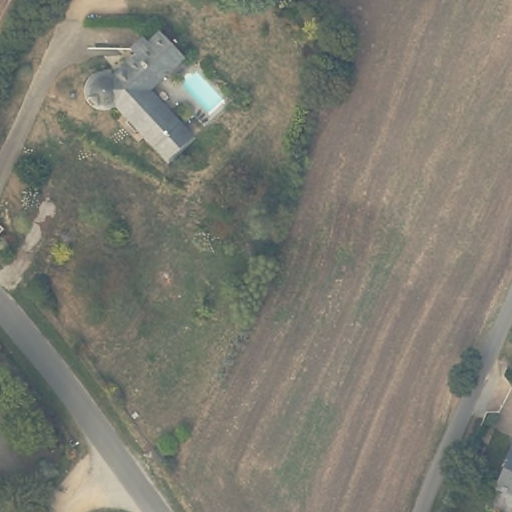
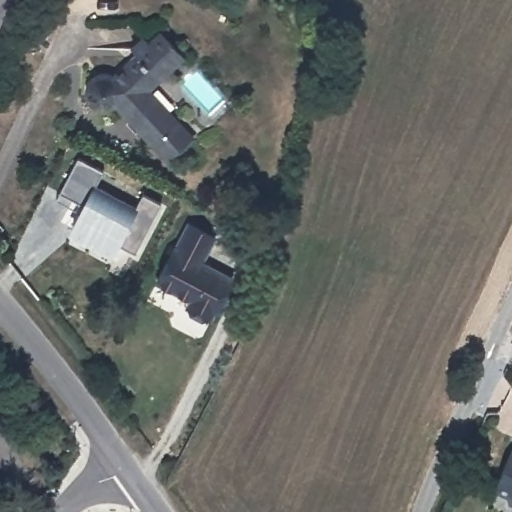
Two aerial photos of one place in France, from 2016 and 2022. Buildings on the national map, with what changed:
unchanged [(181,61),(147,91),(178,125),(174,128),(187,142),(167,160),(154,147),(150,150),(105,101),(101,102),(98,103),(93,102),(89,101),(86,99),(84,97),(81,94),(79,89),(79,82),(81,75),(85,71),(89,69),(97,67),(101,67),(104,68),(107,70),(127,51),(122,46),(135,34),(140,40),(152,29),(181,61)]
new [(119,244),(114,253),(69,230),(82,204),(58,192),(77,156),(101,168),(94,183),(137,205),(141,192),(160,202),(133,251),(119,244)]
new [(205,260),(222,269),(228,288),(223,301),(214,311),(207,319),(199,320),(187,313),(186,299),(156,281),(185,219),(216,234),(205,260)]
unchanged [(512,452),(512,491),(497,483),(512,452)]
unchanged [(512,495),(512,501),(509,500),(512,495)]

